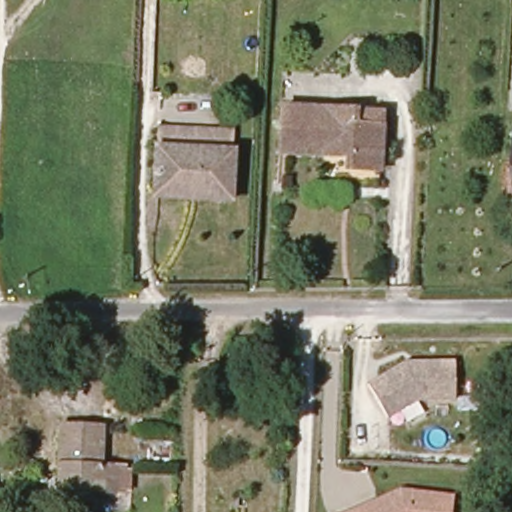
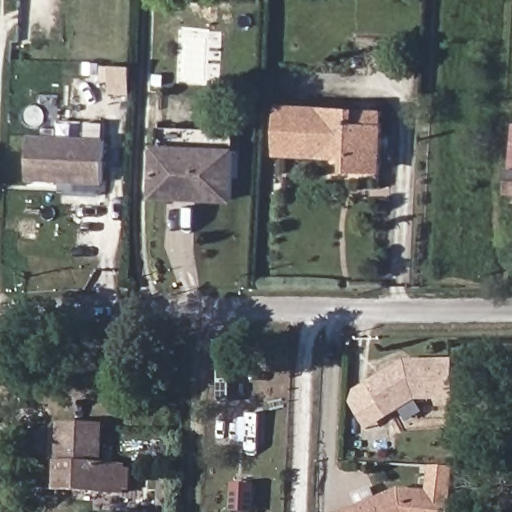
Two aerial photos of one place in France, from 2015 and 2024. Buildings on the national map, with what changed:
unchanged [(280,109),(381,112),(378,170),(347,170),(349,157),(331,156),(331,152),(278,150),(280,109)]
unchanged [(511,125),(512,125),(512,194),(505,194),(511,125)]
new [(27,180),(30,135),(105,138),(102,185),(27,180)]
unchanged [(157,179),(159,139),(237,141),(234,190),(202,189),(157,187),(157,179)]
unchanged [(455,361),(456,398),(417,400),(388,416),(368,384),(406,361),(455,361)]
unchanged [(62,493),(64,430),(104,430),(104,471),(127,472),(127,496),(62,493)]
unchanged [(448,500),(446,512),(352,512),(396,493),(448,500)]

